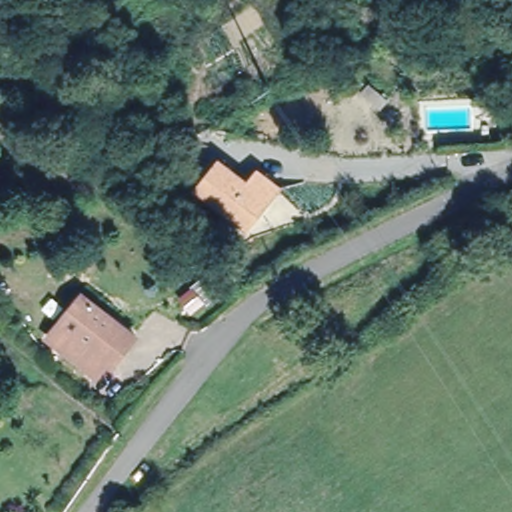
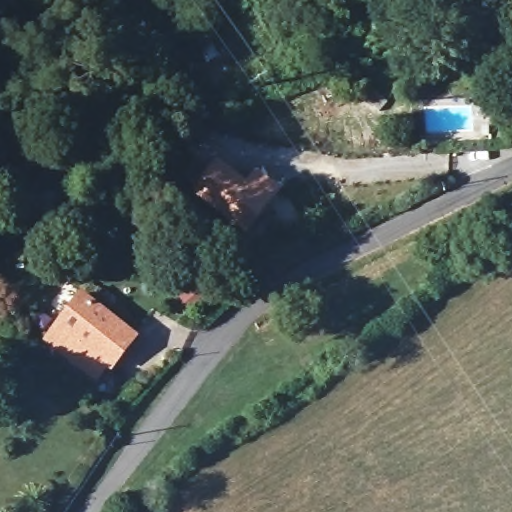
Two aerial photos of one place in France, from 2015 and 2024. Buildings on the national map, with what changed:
unchanged [(251,224),(200,187),(223,157),(253,180),(262,168),(281,183),(251,224)]
unchanged [(109,359),(98,373),(70,352),(52,339),(63,324),(85,296),(135,337),(125,350),(114,364),(109,359)]

